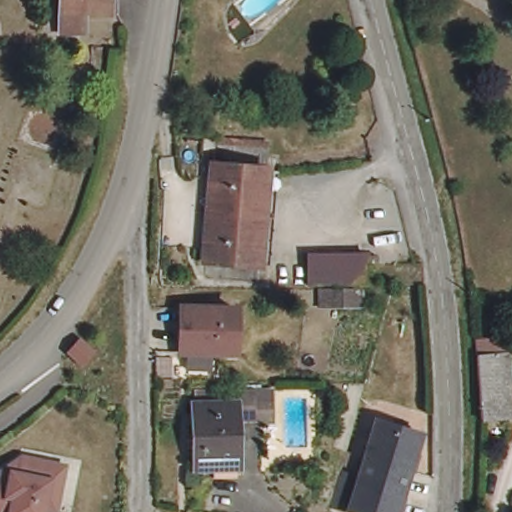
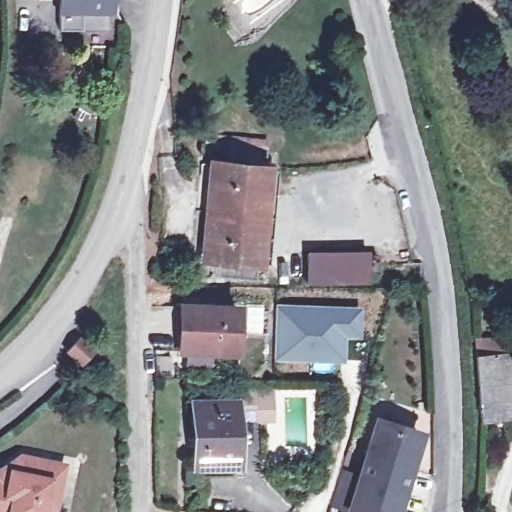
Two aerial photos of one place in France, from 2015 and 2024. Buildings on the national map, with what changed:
unchanged [(59,0),(115,0),(115,14),(105,14),(80,13),(80,30),(59,29),(59,0)]
unchanged [(76,105),(83,92),(94,98),(88,111),(76,105)]
unchanged [(196,260),(198,242),(206,147),(208,127),(263,132),(261,152),(253,247),(251,266),(196,260)]
unchanged [(366,283),(306,283),(306,254),(376,254),(375,272),(367,272),(366,283)]
demolished [(353,287),(351,302),(328,302),(328,287),(353,287)]
new [(361,337),(344,336),(344,362),(274,360),(277,303),(361,307),(361,337)]
unchanged [(234,307),(234,348),(184,348),(184,332),(185,332),(185,322),(186,307),(234,307)]
unchanged [(89,349),(78,362),(65,351),(76,337),(89,349)]
unchanged [(480,351),(499,350),(512,348),(512,356),(512,427),(486,429),(480,351)]
unchanged [(188,409),(188,397),(224,396),(236,395),(256,395),(256,405),(266,405),(266,422),(229,422),(229,410),(188,409)]
unchanged [(229,410),(229,422),(231,469),(189,470),(188,409),(229,410)]
unchanged [(405,490),(398,512),(378,512),(354,505),(334,498),(336,496),(343,470),(363,476),(381,418),(423,432),(405,490)]
unchanged [(44,462),(41,478),(53,481),(48,508),(35,506),(34,512),(0,512),(0,465),(4,462),(11,463),(13,456),(44,462)]

